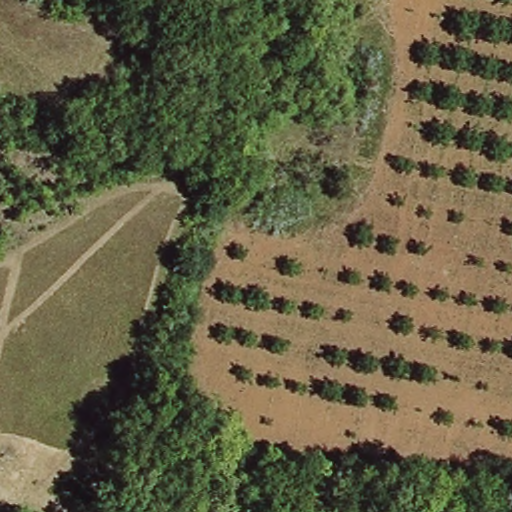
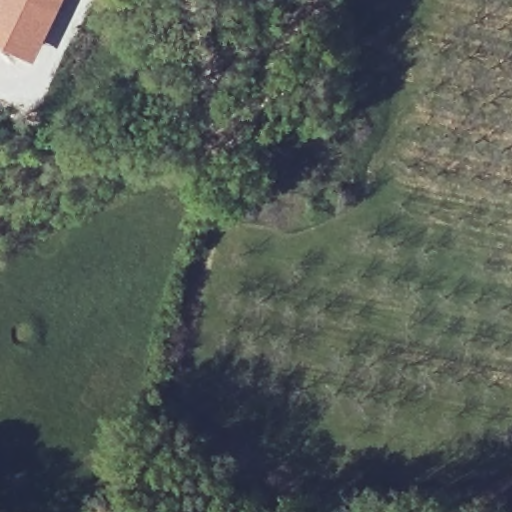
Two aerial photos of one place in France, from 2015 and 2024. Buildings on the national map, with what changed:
new [(38,59),(0,40),(0,0),(66,0),(38,59)]

